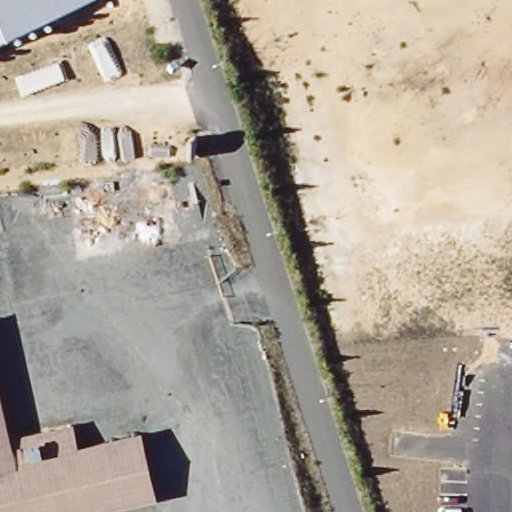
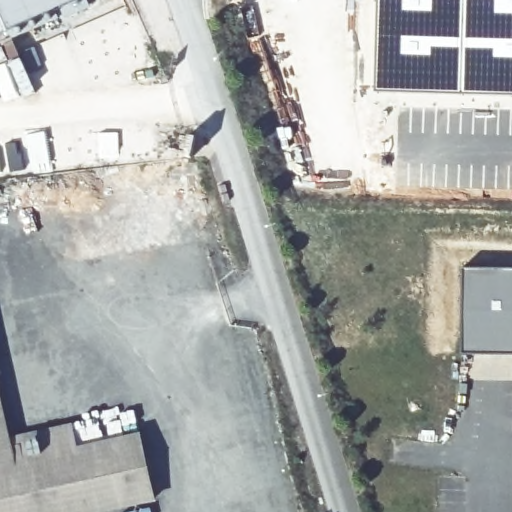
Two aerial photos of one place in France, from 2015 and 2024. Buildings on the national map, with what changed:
unchanged [(0,33),(0,0),(74,0),(0,33)]
new [(378,0),(512,0),(512,95),(376,91),(378,0)]
new [(464,267),(512,268),(512,355),(462,353),(464,267)]
unchanged [(77,422),(81,443),(142,432),(157,500),(105,512),(0,512),(0,379),(12,435),(77,422)]

